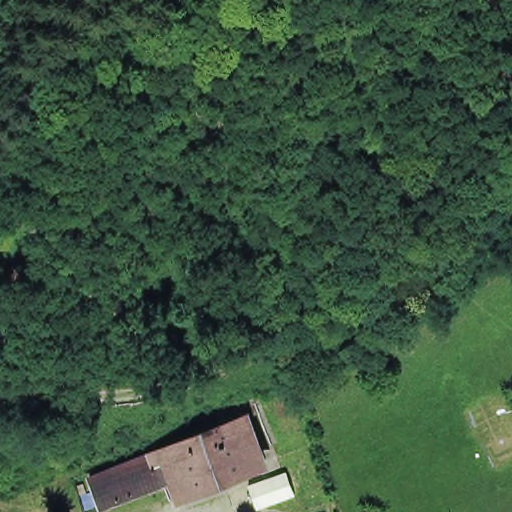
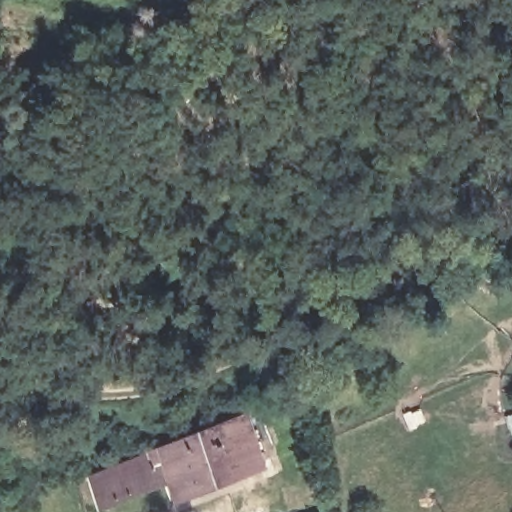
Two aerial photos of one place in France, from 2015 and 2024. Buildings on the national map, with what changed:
unchanged [(167,444),(247,416),(268,466),(188,495),(180,476),(169,450),(167,444)]
unchanged [(95,473),(169,450),(180,476),(107,502),(95,473)]

